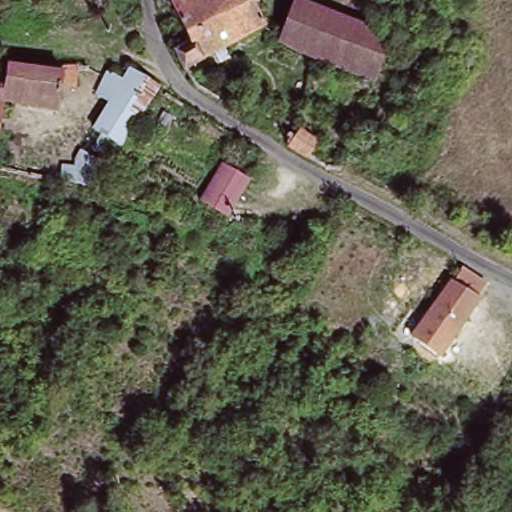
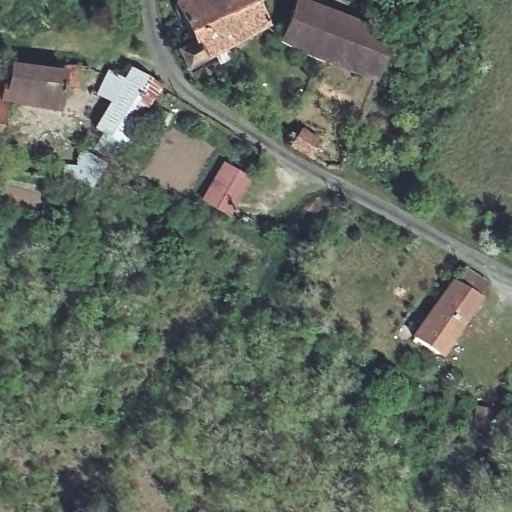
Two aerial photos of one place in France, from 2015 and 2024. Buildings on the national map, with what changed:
unchanged [(232,46),(235,53),(205,66),(202,59),(192,64),(173,17),(185,14),(183,0),(271,0),(272,2),(263,5),(270,26),(266,30),(232,46)]
unchanged [(403,49),(390,83),(290,48),(307,0),(329,0),(323,21),(403,49)]
unchanged [(104,91),(115,74),(125,80),(132,68),(165,86),(132,145),(108,130),(124,102),(104,91)]
unchanged [(89,82),(79,83),(73,110),(28,102),(30,90),(19,87),(24,69),(70,77),(71,69),(90,72),(89,82)]
unchanged [(0,83),(19,87),(0,164),(0,83)]
unchanged [(292,141),(298,129),(318,136),(310,151),(292,141)]
unchanged [(256,178),(234,213),(209,197),(230,162),(256,178)]
unchanged [(464,278),(489,293),(449,356),(422,340),(464,278)]

